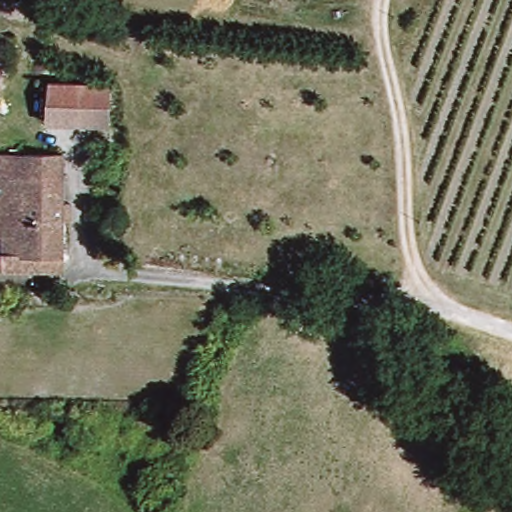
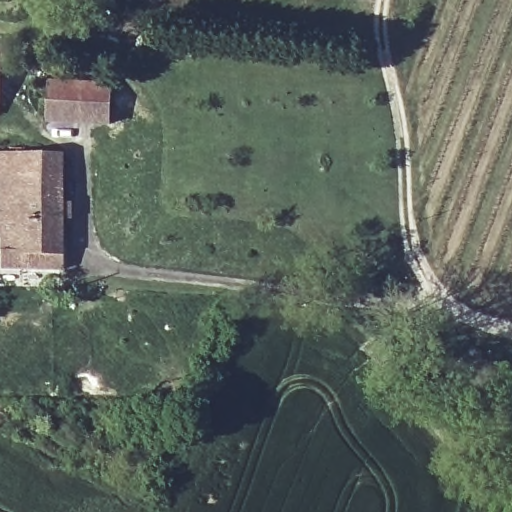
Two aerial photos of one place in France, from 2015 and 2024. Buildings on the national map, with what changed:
unchanged [(46,79),(111,79),(108,119),(45,121),(46,79)]
unchanged [(62,258),(25,258),(25,229),(0,229),(0,154),(61,153),(62,258)]

